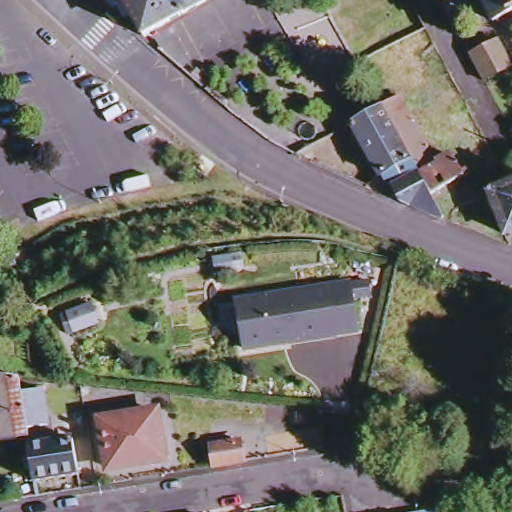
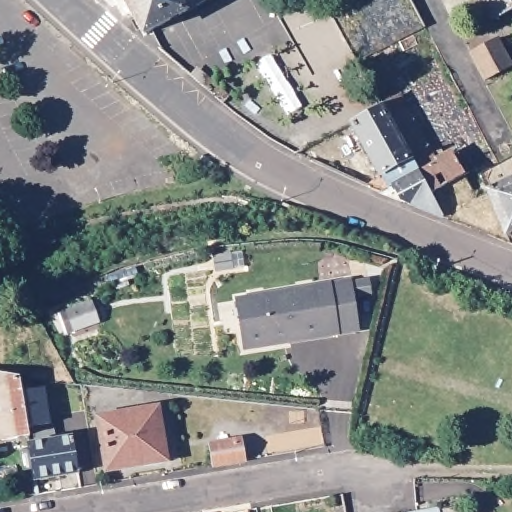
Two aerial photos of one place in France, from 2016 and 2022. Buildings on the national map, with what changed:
unchanged [(140,42),(118,0),(220,0),(140,42)]
unchanged [(512,9),(494,19),(484,0),(512,0),(512,9)]
unchanged [(512,62),(512,66),(486,80),(472,52),(498,38),(512,62)]
unchanged [(423,174),(395,122),(388,109),(387,108),(403,99),(442,169),(456,160),(468,181),(436,198),(423,174)]
unchanged [(375,190),(387,178),(359,126),(388,109),(395,122),(423,174),(386,195),(375,190)]
unchanged [(413,207),(386,195),(423,174),(436,198),(449,222),(413,207)]
unchanged [(512,237),(493,197),(512,189),(512,237)]
unchanged [(245,351),(238,304),(350,288),(367,285),(370,298),(352,301),(357,335),(245,351)]
unchanged [(60,310),(67,308),(91,300),(97,319),(74,327),(66,329),(60,310)]
unchanged [(52,427),(31,430),(33,439),(0,444),(0,377),(24,380),(26,394),(47,391),(52,427)]
unchanged [(161,413),(169,461),(115,470),(105,422),(161,413)]
unchanged [(215,464),(211,444),(241,438),(245,459),(215,464)]
unchanged [(34,447),(77,442),(83,476),(40,483),(34,447)]
unchanged [(470,512),(437,512),(469,506),(470,512)]

